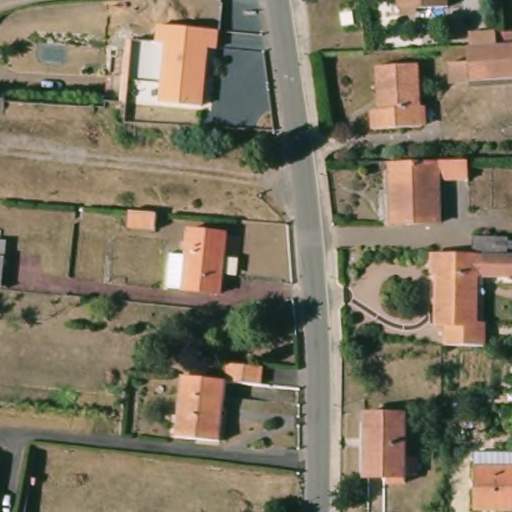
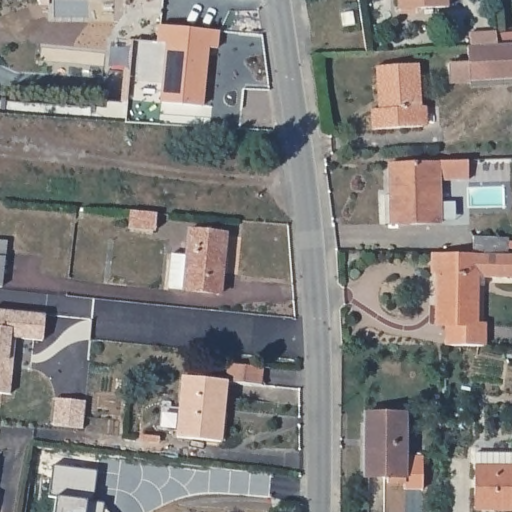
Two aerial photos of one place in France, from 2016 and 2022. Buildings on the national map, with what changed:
unchanged [(401,11),(401,0),(452,0),(452,7),(401,11)]
unchanged [(480,75),(460,76),(459,57),(479,56),(478,41),(481,40),(480,27),(509,25),(510,28),(512,28),(512,81),(480,82),(480,75)]
unchanged [(360,30),(360,42),(353,42),(353,31),(360,30)]
unchanged [(206,106),(159,100),(165,37),(213,42),(206,106)]
unchanged [(375,65),(418,63),(421,127),(370,129),(370,108),(377,108),(376,91),(375,65)]
unchanged [(471,157),(471,177),(441,179),(442,222),(387,222),(385,192),(390,191),(390,161),(471,157)]
unchanged [(154,212),(153,229),(126,228),(126,211),(154,212)]
unchanged [(190,252),(192,227),(230,229),(227,288),(188,287),(188,285),(173,284),(175,251),(190,252)]
unchanged [(439,269),(433,269),(433,252),(458,252),(472,252),(473,252),(486,252),(486,249),(476,249),(476,234),(511,233),(511,237),(512,237),(512,246),(511,246),(511,249),(512,249),(512,274),(486,275),(486,267),(477,267),(476,322),(486,322),(485,343),(461,343),(448,342),(448,322),(439,322),(439,302),(439,269)]
new [(46,316),(43,341),(16,338),(10,395),(0,394),(0,311),(46,316)]
unchanged [(261,390),(226,387),(227,370),(262,372),(261,390)]
unchanged [(179,441),(179,438),(173,438),(175,418),(180,419),(184,383),(226,387),(220,446),(179,441)]
unchanged [(400,408),(400,442),(410,442),(410,465),(400,466),(400,475),(381,475),(381,470),(358,470),(357,408),(400,408)]
new [(56,497),(50,496),(54,466),(97,471),(94,501),(105,501),(103,512),(55,512),(56,497)]
unchanged [(512,509),(474,508),(475,467),(512,468),(512,509)]

